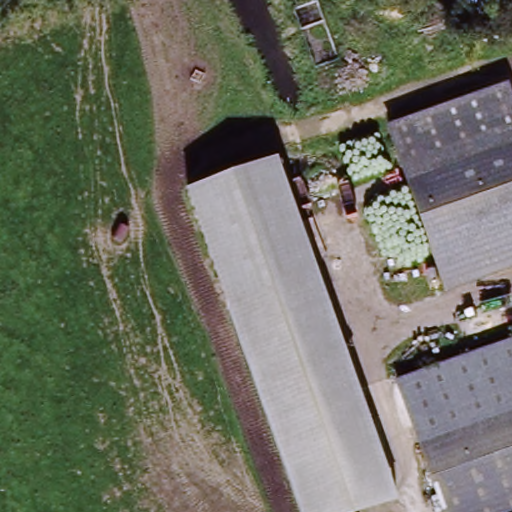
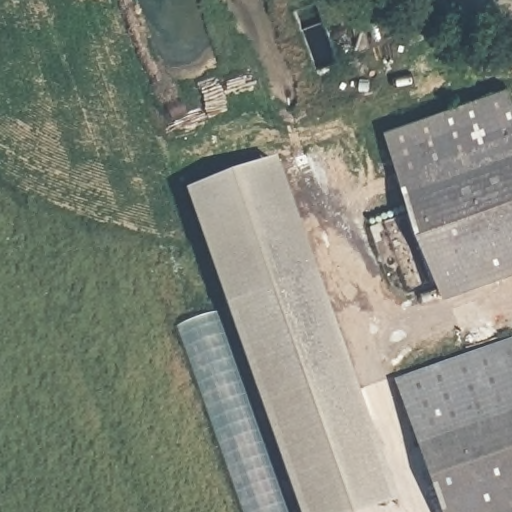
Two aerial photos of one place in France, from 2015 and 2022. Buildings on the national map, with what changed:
unchanged [(505,92),(512,112),(512,269),(448,293),(388,135),(505,92)]
unchanged [(395,503),(372,512),(298,512),(192,188),(280,154),(395,503)]
new [(286,512),(240,512),(175,326),(214,313),(286,512)]
unchanged [(512,483),(442,508),(398,389),(512,347),(512,483)]
unchanged [(512,483),(512,512),(444,512),(442,508),(512,483)]

